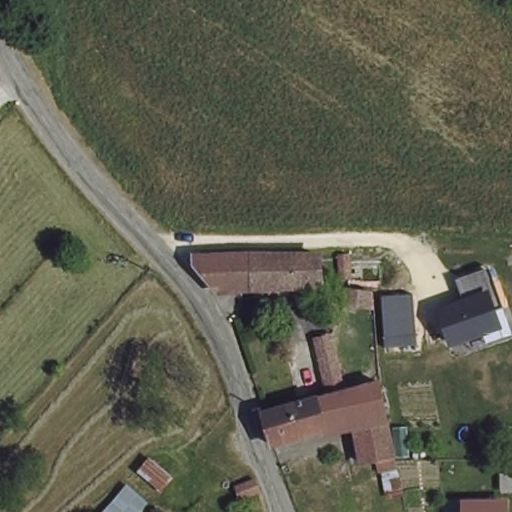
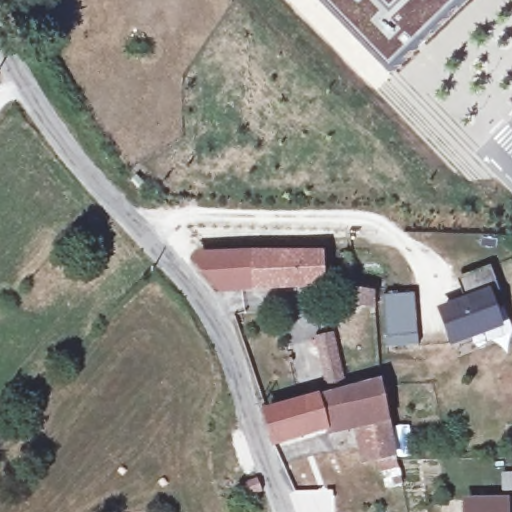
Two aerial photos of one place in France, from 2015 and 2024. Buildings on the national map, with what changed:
new [(461,0),(391,70),(321,0),(461,0)]
unchanged [(198,256),(278,254),(278,260),(321,258),(324,290),(221,294),(217,287),(197,264),(198,256)]
unchanged [(355,281),(344,282),(338,258),(350,257),(355,281)]
unchanged [(512,331),(512,339),(488,347),(485,338),(451,349),(436,313),(463,302),(453,280),(491,268),(512,331)]
unchanged [(375,296),(379,321),(348,318),(351,296),(359,296),(375,296)]
unchanged [(384,298),(414,296),(417,347),(387,346),(384,298)]
unchanged [(348,383),(304,394),(291,345),(335,334),(348,383)]
unchanged [(389,378),(398,451),(399,458),(403,484),(392,485),(389,468),(382,469),(378,456),(364,459),(354,418),(273,442),(265,412),(389,378)]
demolished [(189,504),(171,482),(162,493),(136,467),(151,453),(161,461),(173,445),(183,456),(171,469),(178,475),(192,463),(208,486),(189,504)]
unchanged [(261,489),(241,494),(239,483),(256,477),(261,489)]
unchanged [(497,500),(498,477),(512,477),(512,500),(508,500),(509,512),(461,512),(460,502),(497,500)]
demolished [(138,512),(103,512),(130,483),(150,499),(138,512)]

